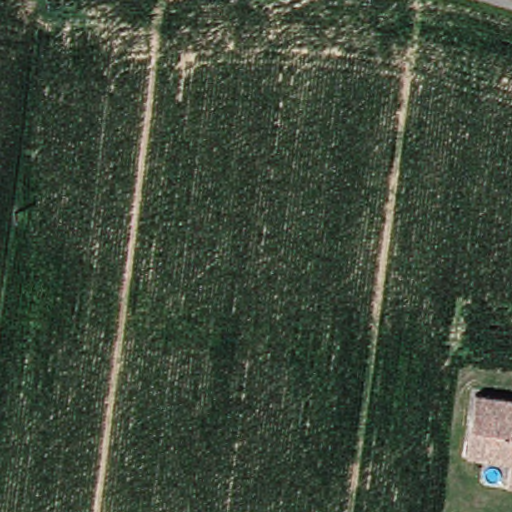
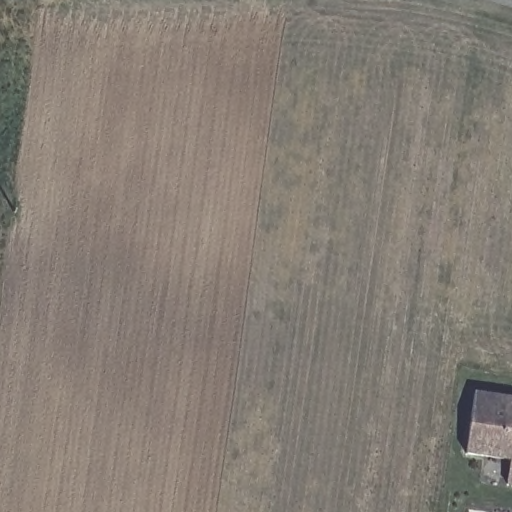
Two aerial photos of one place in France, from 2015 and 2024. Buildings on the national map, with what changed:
unchanged [(480,392),(512,396),(512,456),(472,452),(480,392)]
unchanged [(512,462),(512,480),(511,480),(512,462)]

